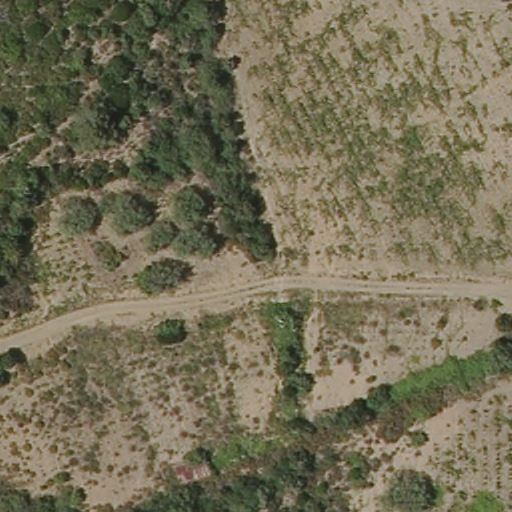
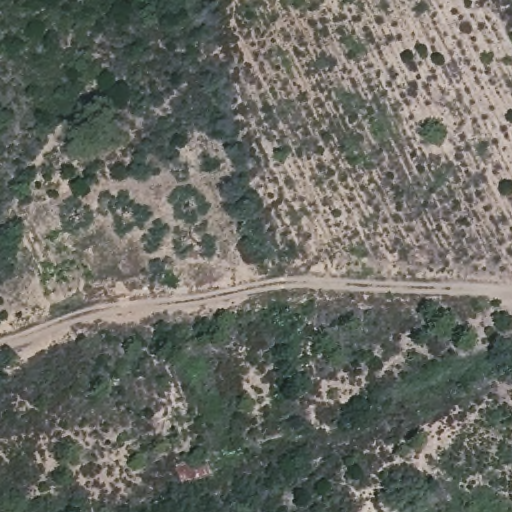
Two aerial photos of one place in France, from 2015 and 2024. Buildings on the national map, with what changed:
unchanged [(209,460),(213,467),(183,479),(176,461),(204,449),(209,460)]

